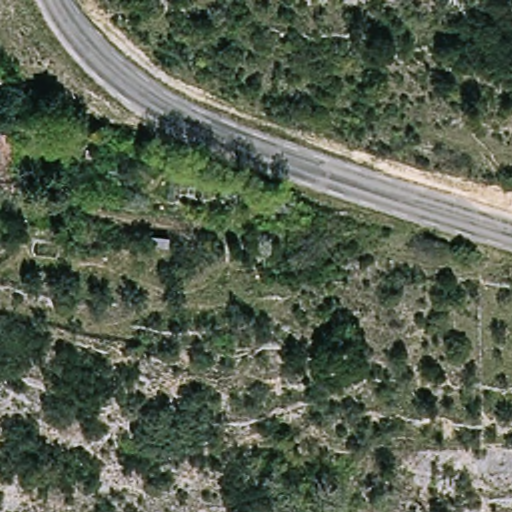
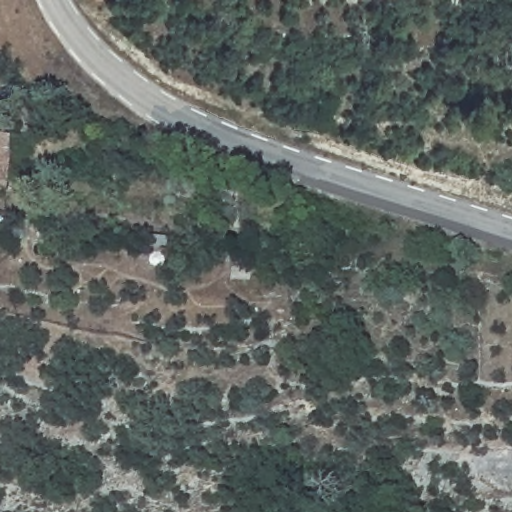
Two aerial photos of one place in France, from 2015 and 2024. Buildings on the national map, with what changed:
unchanged [(17,137),(6,190),(0,188),(0,135),(17,137)]

